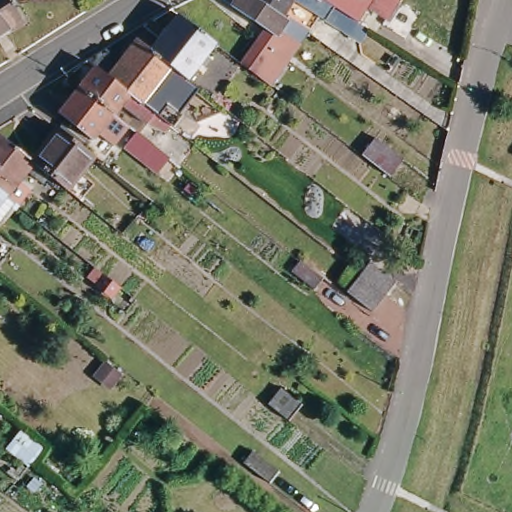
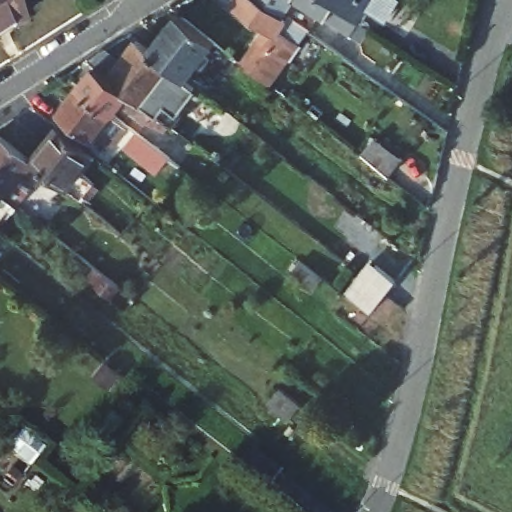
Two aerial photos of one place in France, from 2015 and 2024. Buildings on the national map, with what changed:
unchanged [(22,14),(0,28),(0,0),(13,0),(22,14)]
unchanged [(293,17),(295,16),(315,30),(313,32),(276,86),(247,64),(271,30),(228,0),(263,0),(292,20),(293,17)]
unchanged [(324,16),(315,30),(295,16),(293,17),(292,20),(263,0),(327,0),(404,0),(393,17),(374,6),(371,10),(366,19),(363,22),(355,35),(324,16)]
unchanged [(220,44),(199,70),(192,80),(178,69),(155,51),(166,36),(183,15),(220,44)]
unchanged [(142,41),(155,51),(178,69),(165,87),(149,106),(113,77),(142,41)]
unchanged [(93,78),(101,69),(106,72),(113,77),(149,106),(183,134),(175,143),(126,105),(118,114),(85,88),(93,78)]
unchanged [(118,114),(185,166),(173,181),(125,144),(129,139),(110,124),(98,139),(65,114),(85,88),(118,114)]
unchanged [(67,185),(50,170),(35,159),(47,142),(44,140),(57,123),(93,151),(67,185)]
unchanged [(50,170),(43,179),(28,166),(8,191),(0,185),(0,131),(35,159),(50,170)]
unchanged [(375,139),(402,160),(390,177),(362,156),(375,139)]
unchanged [(16,198),(0,218),(0,185),(8,191),(16,198)]
unchanged [(314,290),(292,272),(301,261),(323,279),(314,290)]
unchanged [(348,293),(360,277),(372,263),(396,282),(385,296),(371,312),(348,293)]
unchanged [(268,403),(281,389),(302,405),(290,420),(268,403)]
unchanged [(255,453),(278,472),(269,484),(245,465),(255,453)]

